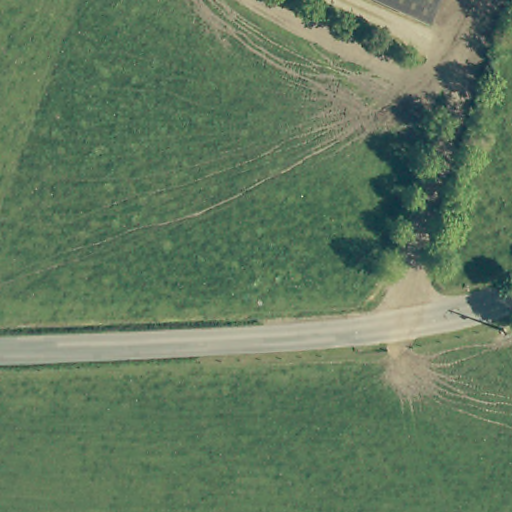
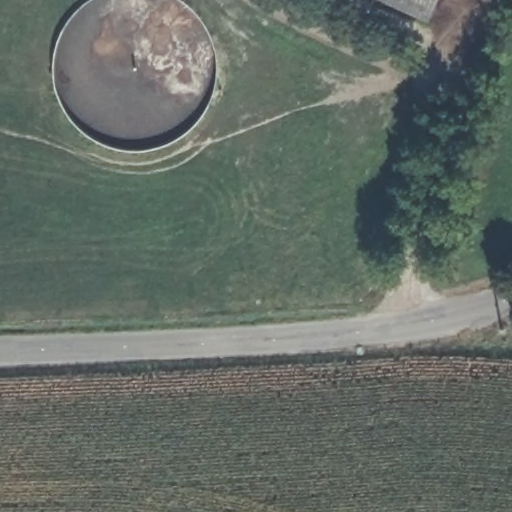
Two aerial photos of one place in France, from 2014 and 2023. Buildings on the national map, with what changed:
unchanged [(381,0),(438,0),(428,20),(381,0)]

